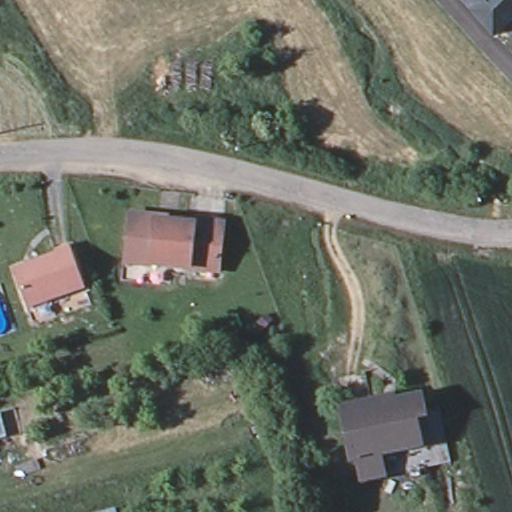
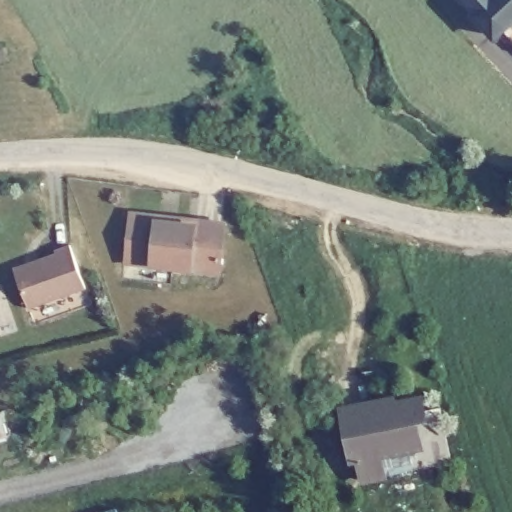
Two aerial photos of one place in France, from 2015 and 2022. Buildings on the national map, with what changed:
unchanged [(499,31),(479,8),(480,7),(473,0),(512,0),(512,19),(499,31)]
unchanged [(158,212),(157,215),(177,217),(177,214),(223,219),(218,267),(127,257),(132,209),(158,212)]
unchanged [(56,253),(55,250),(70,245),(85,288),(27,309),(13,268),(56,253)]
unchanged [(400,398),(401,402),(427,397),(431,420),(422,422),(427,446),(385,454),(390,476),(367,481),(362,459),(356,460),(346,409),(400,398)]

